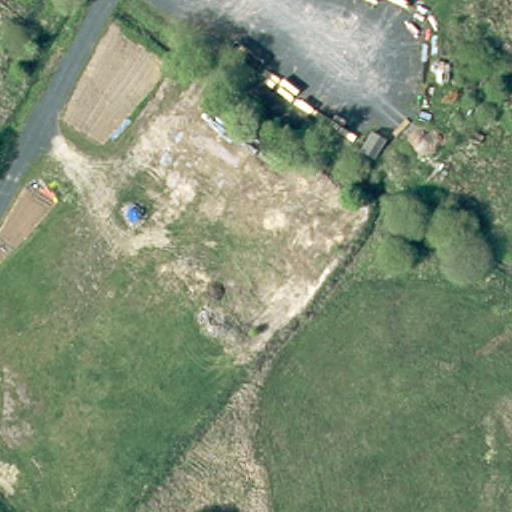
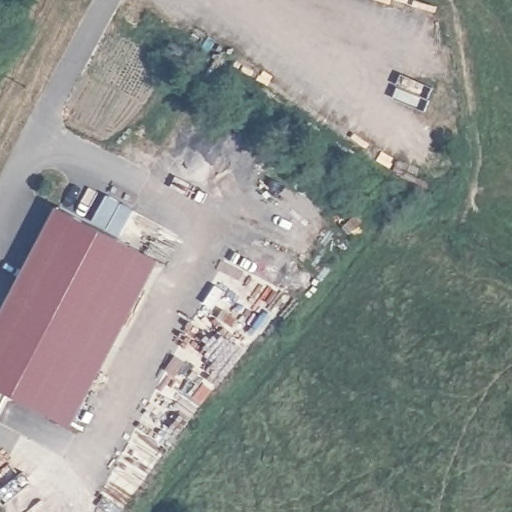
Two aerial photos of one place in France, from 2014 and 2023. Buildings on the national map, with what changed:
new [(73,427),(0,387),(0,318),(59,205),(161,260),(73,427)]

